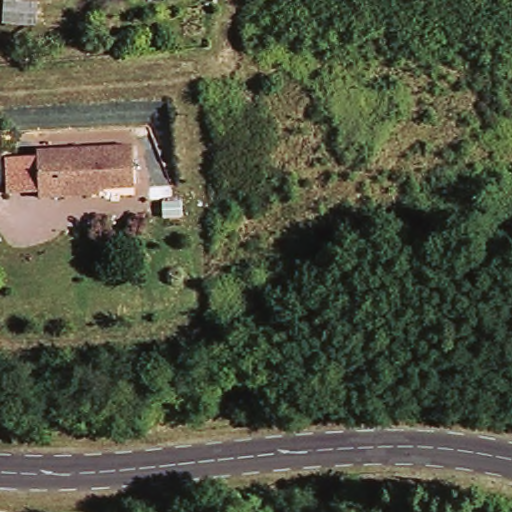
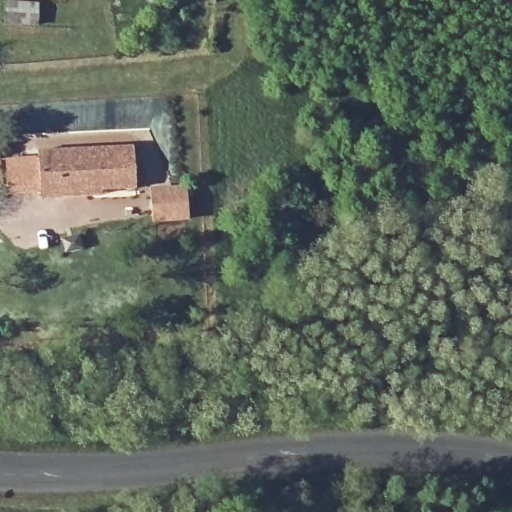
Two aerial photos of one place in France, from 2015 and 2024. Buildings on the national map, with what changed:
unchanged [(38,151),(132,146),(133,185),(91,187),(91,195),(41,198),(40,191),(38,157),(38,151)]
unchanged [(7,159),(38,157),(40,191),(9,193),(7,159)]
new [(186,183),(189,222),(152,225),(148,185),(186,183)]

